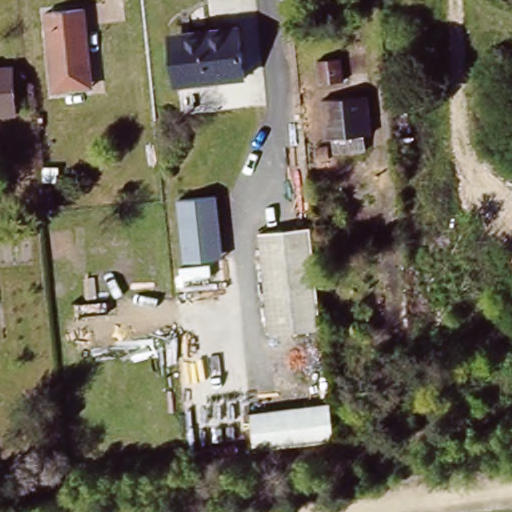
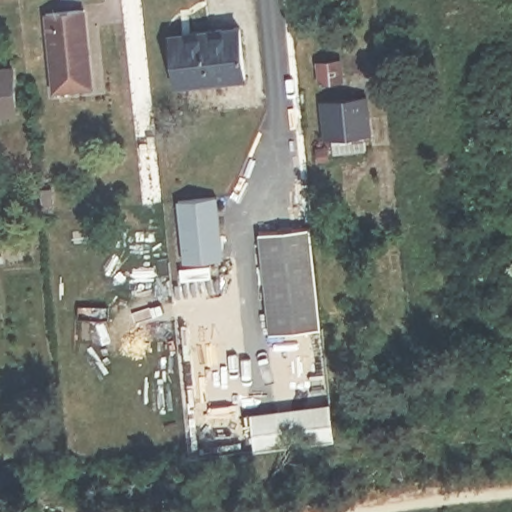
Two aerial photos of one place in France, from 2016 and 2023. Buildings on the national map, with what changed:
unchanged [(79,9),(90,85),(53,89),(42,14),(79,9)]
unchanged [(207,33),(206,25),(236,21),(242,74),(176,82),(171,38),(207,33)]
unchanged [(333,55),(334,78),(314,80),(313,57),(333,55)]
unchanged [(17,114),(0,115),(0,65),(13,65),(17,114)]
unchanged [(368,126),(369,145),(338,147),(336,130),(331,130),(326,89),(370,85),(371,85),(374,125),(373,126),(368,126)]
unchanged [(51,172),(53,193),(41,194),(39,172),(51,172)]
unchanged [(217,195),(223,257),(183,262),(177,199),(217,195)]
unchanged [(318,330),(269,335),(259,231),(309,226),(318,330)]
unchanged [(334,435),(254,446),(250,410),(331,400),(334,435)]

